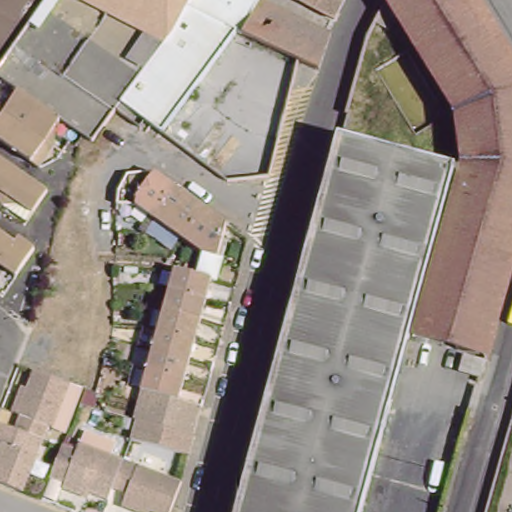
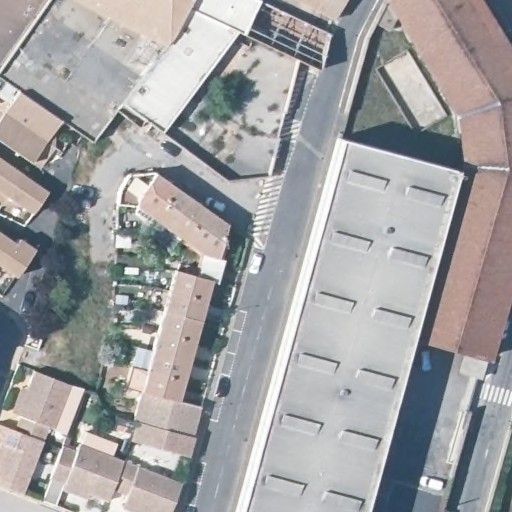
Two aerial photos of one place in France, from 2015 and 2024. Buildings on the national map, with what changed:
unchanged [(0,68),(0,0),(47,0),(0,68)]
unchanged [(195,26),(131,113),(125,110),(121,116),(115,113),(93,144),(84,138),(61,122),(17,92),(0,80),(0,68),(47,0),(209,0),(195,26)]
unchanged [(209,0),(260,0),(243,35),(236,34),(162,136),(131,113),(195,26),(209,0)]
unchanged [(319,71),(300,62),(243,35),(260,0),(264,0),(329,33),(319,71)]
unchanged [(338,15),(308,0),(346,0),(338,15)]
unchanged [(415,335),(460,170),(465,171),(467,164),(460,117),(391,0),(481,0),(512,51),(512,284),(491,357),(415,335)]
unchanged [(32,165),(0,142),(0,117),(17,92),(61,122),(32,165)]
unchanged [(415,335),(390,431),(376,479),(367,512),(241,512),(279,371),(342,137),(460,170),(415,335)]
unchanged [(28,210),(0,191),(0,157),(43,187),(28,210)]
unchanged [(133,200),(118,205),(118,191),(128,170),(139,170),(155,168),(227,219),(217,254),(223,255),(217,277),(212,275),(178,398),(139,387),(175,265),(199,272),(204,251),(133,200)]
unchanged [(16,238),(19,233),(36,244),(16,273),(0,262),(0,227),(16,238)]
unchanged [(467,358),(489,364),(486,376),(465,370),(467,358)]
unchanged [(42,372),(71,381),(56,426),(51,424),(47,436),(18,425),(22,413),(18,412),(12,409),(20,385),(27,387),(32,369),(42,372)]
unchanged [(131,417),(139,387),(178,398),(201,405),(193,435),(134,418),(131,417)]
unchanged [(134,418),(193,435),(188,454),(128,438),(134,418)]
unchanged [(1,419),(18,425),(47,436),(26,492),(0,483),(0,442),(2,438),(0,437),(0,422),(1,419)]
unchanged [(52,484),(65,448),(82,454),(84,447),(86,448),(91,432),(117,441),(111,457),(126,463),(115,493),(110,506),(94,500),(91,506),(67,497),(69,491),(52,484)]
unchanged [(115,493),(126,463),(184,485),(174,512),(127,512),(124,511),(126,505),(128,498),(115,493)]

